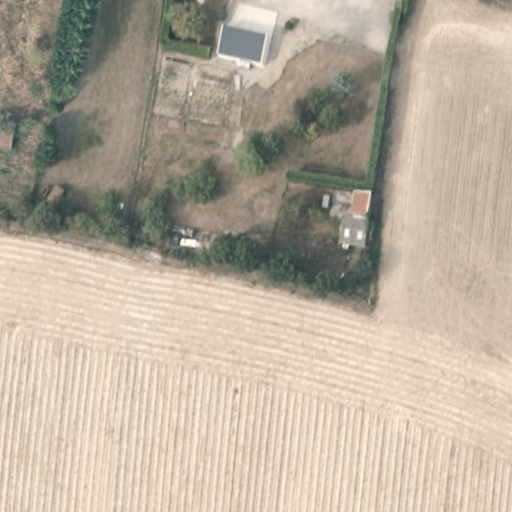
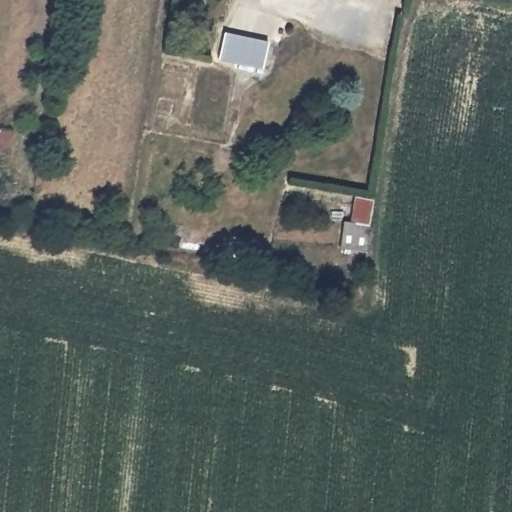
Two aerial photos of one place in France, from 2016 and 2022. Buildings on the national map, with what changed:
unchanged [(212,63),(220,28),(268,35),(262,70),(212,63)]
unchanged [(339,247),(345,215),(352,216),(356,195),(376,195),(366,253),(339,247)]

